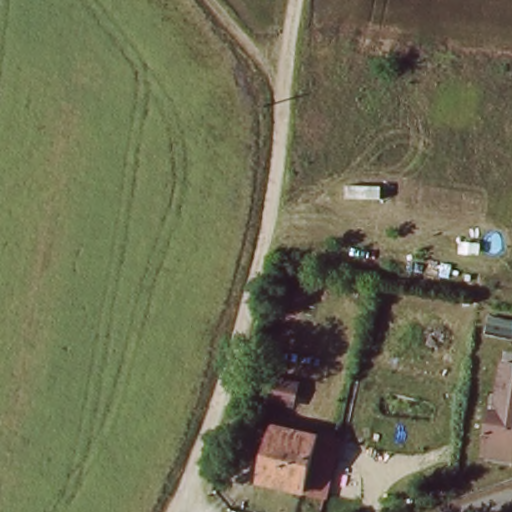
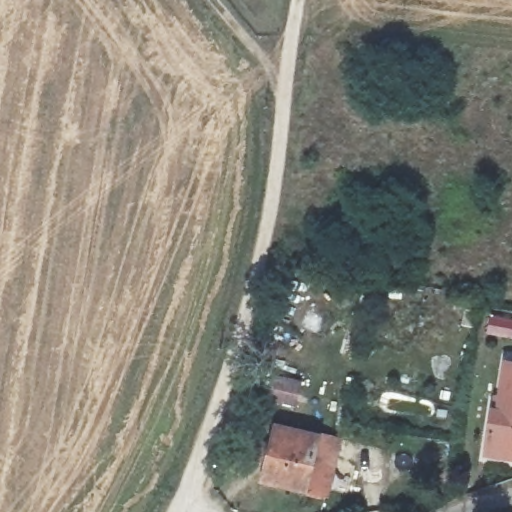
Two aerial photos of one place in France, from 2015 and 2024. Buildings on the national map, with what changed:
unchanged [(502,401),(509,362),(512,363),(512,402),(502,401)]
unchanged [(490,401),(502,401),(512,402),(512,458),(483,455),(490,401)]
unchanged [(302,489),(301,492),(254,479),(271,422),(317,434),(302,489)]
unchanged [(317,434),(339,440),(324,494),(302,489),(317,434)]

